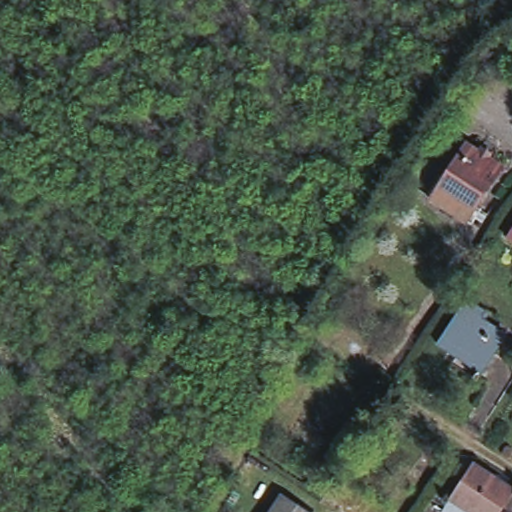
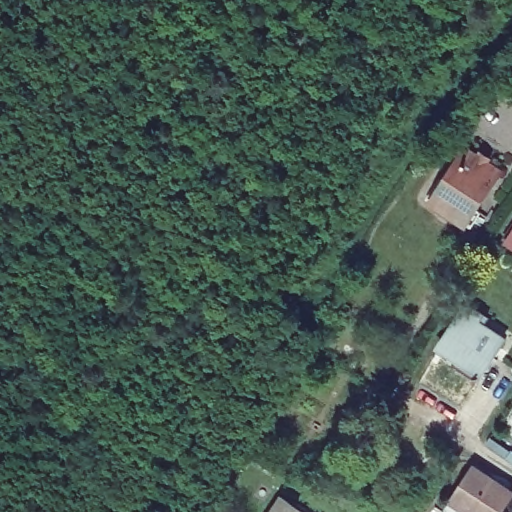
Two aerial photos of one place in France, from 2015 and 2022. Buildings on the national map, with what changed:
unchanged [(490,179),(465,219),(447,207),(452,200),(436,190),(458,158),(490,179)]
unchanged [(504,243),(512,231),(512,248),(504,243)]
unchanged [(489,320),(486,326),(507,339),(486,371),(463,356),(458,362),(439,350),(469,306),(489,320)]
unchanged [(453,498),(474,466),(512,491),(512,492),(498,512),(474,512),(470,509),(453,498)]
unchanged [(313,512),(270,512),(283,493),(313,512)]

